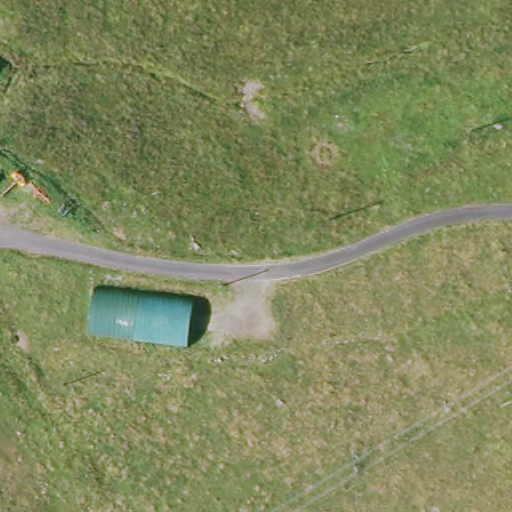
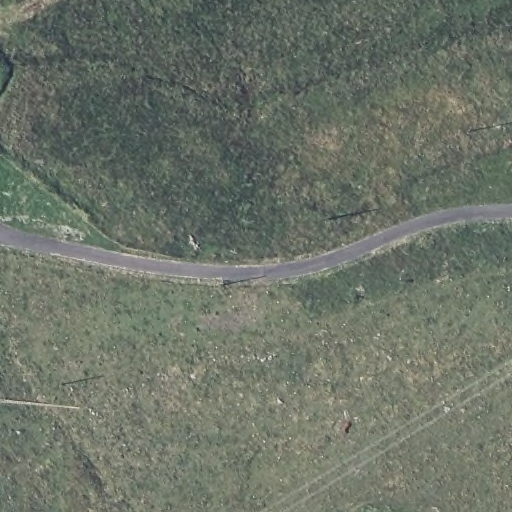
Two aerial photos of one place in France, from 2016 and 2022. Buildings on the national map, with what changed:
demolished [(85,343),(85,297),(169,299),(119,344),(85,343)]
demolished [(149,345),(119,344),(169,299),(187,299),(186,313),(185,346),(149,345)]

